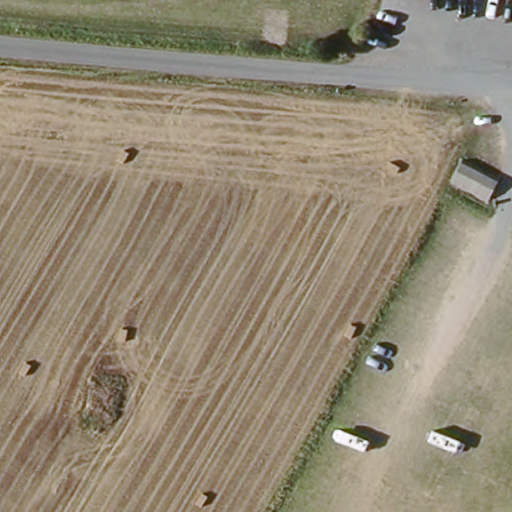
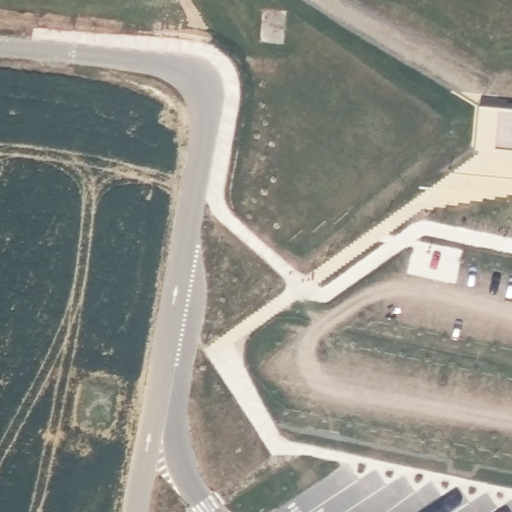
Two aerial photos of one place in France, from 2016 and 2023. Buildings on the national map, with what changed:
new [(476,152),(478,110),(512,113),(512,155),(476,152)]

